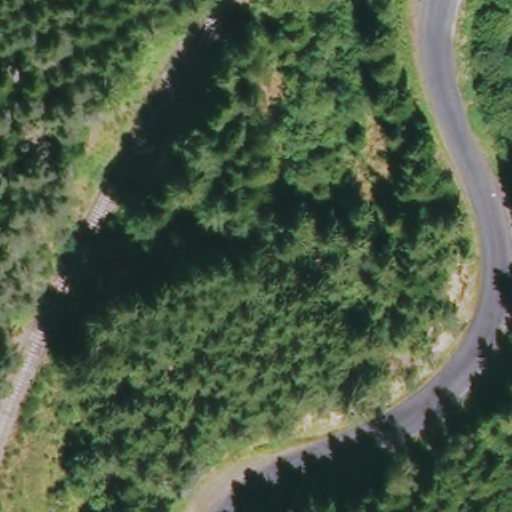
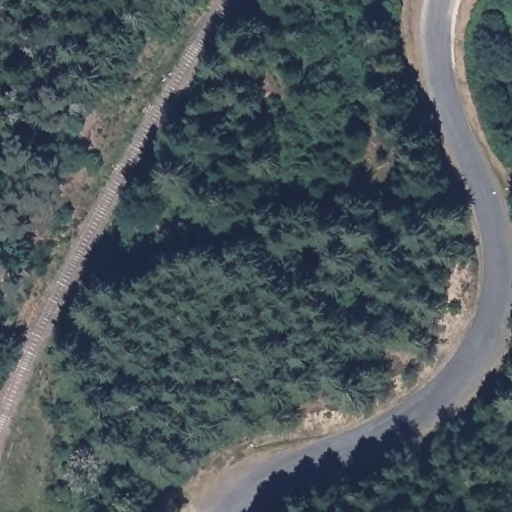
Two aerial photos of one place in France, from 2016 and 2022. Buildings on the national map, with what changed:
unchanged [(222,441),(221,412),(255,411),(254,443),(222,441)]

